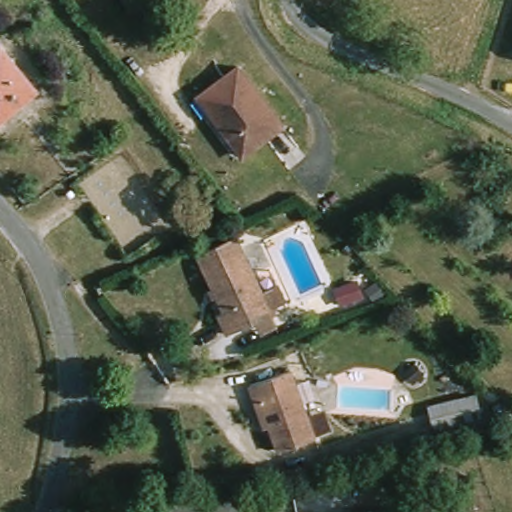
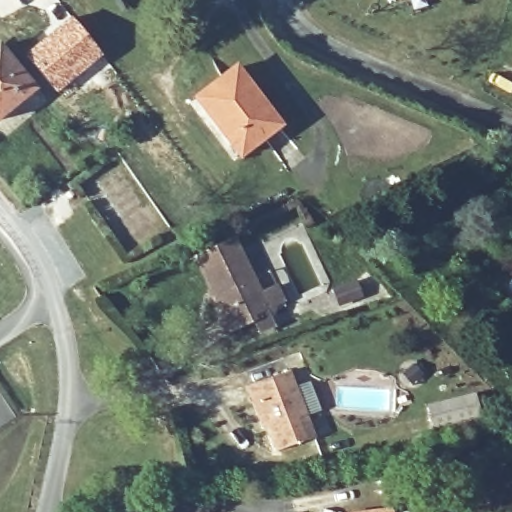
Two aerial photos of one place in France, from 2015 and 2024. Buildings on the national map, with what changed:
new [(72,16),(104,54),(55,94),(24,54),(72,16)]
unchanged [(34,86),(0,114),(0,45),(34,86)]
unchanged [(240,153),(197,97),(235,67),(240,63),(283,120),(278,124),(240,153)]
unchanged [(255,327),(252,323),(223,336),(214,316),(221,314),(195,256),(233,238),(258,295),(273,288),(280,305),(265,311),(270,321),(255,327)]
unchanged [(356,294),(337,302),(332,288),(351,281),(356,294)]
unchanged [(246,383),(286,368),(312,437),(277,450),(269,428),(266,422),(261,424),(252,401),(246,383)]
unchanged [(476,392),(483,422),(434,435),(428,404),(476,392)]
unchanged [(390,512),(365,512),(389,508),(390,512)]

